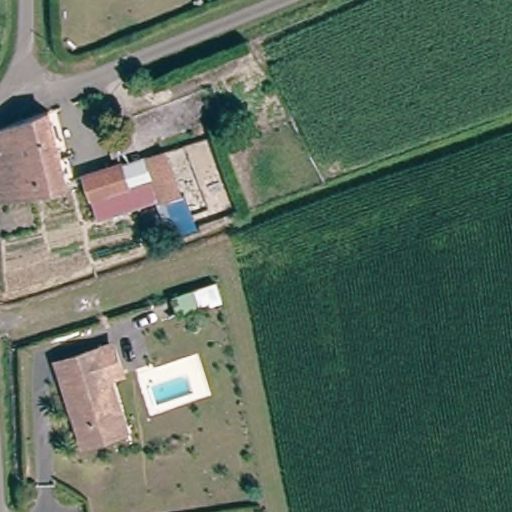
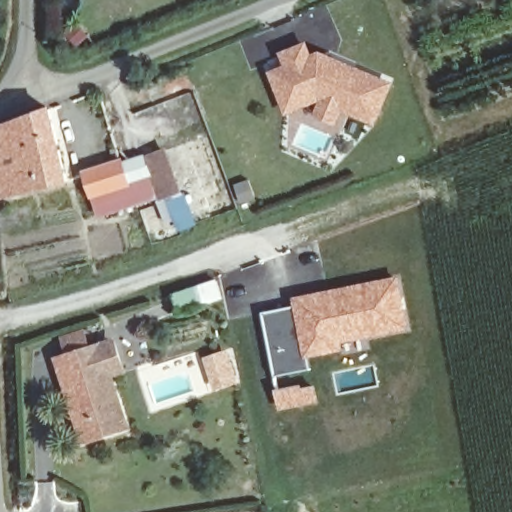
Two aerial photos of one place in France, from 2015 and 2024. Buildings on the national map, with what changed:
new [(313,115),(319,102),(286,116),(269,71),(285,65),(279,51),(307,41),(312,54),(320,51),(395,83),(375,126),(343,112),(337,126),(313,115)]
unchanged [(3,196),(0,185),(0,150),(0,134),(48,114),(65,181),(3,196)]
unchanged [(180,240),(166,201),(156,205),(152,194),(141,196),(129,157),(150,150),(171,144),(187,195),(200,234),(180,240)]
unchanged [(141,196),(120,204),(114,185),(97,190),(91,170),(129,157),(141,196)]
new [(399,274),(410,331),(344,345),(345,350),(308,358),(307,354),(305,354),(292,304),(290,295),(399,274)]
unchanged [(193,287),(199,306),(175,313),(169,295),(193,287)]
new [(292,304),(305,354),(307,354),(308,358),(310,371),(274,378),(260,310),(292,304)]
unchanged [(81,441),(55,360),(97,346),(108,342),(117,371),(106,375),(123,427),(81,441)]
new [(228,347),(239,382),(211,390),(200,356),(228,347)]
new [(315,382),(318,402),(277,410),(273,387),(315,382)]

